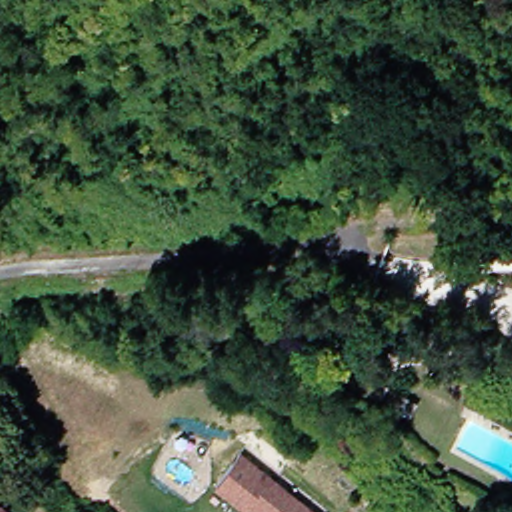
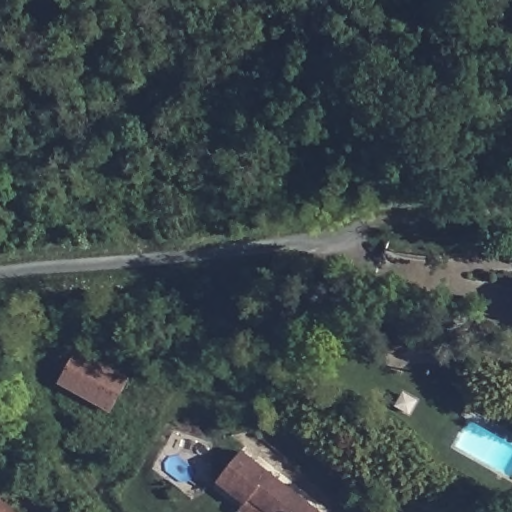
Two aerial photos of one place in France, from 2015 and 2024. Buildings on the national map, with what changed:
new [(129,380),(110,417),(57,387),(76,351),(129,380)]
unchanged [(247,506),(217,484),(242,451),(322,512),(242,512),(247,506)]
unchanged [(0,499),(2,496),(21,512),(0,512),(0,499)]

